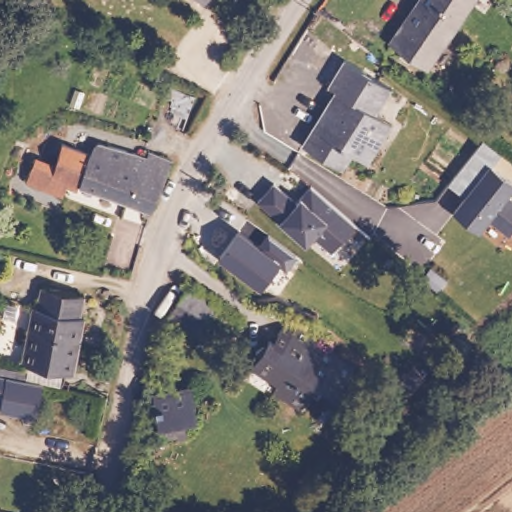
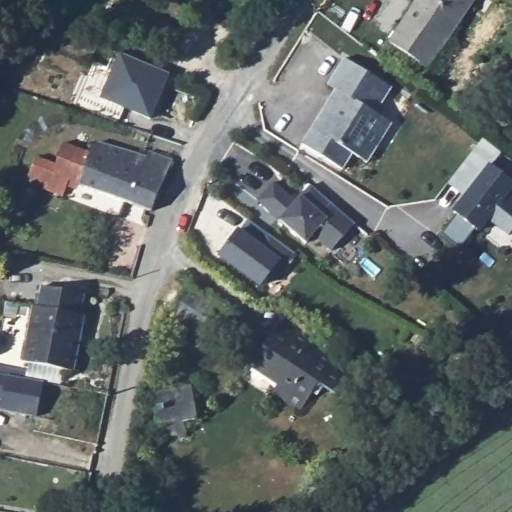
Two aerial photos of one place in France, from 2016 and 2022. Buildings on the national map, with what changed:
unchanged [(391,36),(417,0),(471,0),(428,65),(391,36)]
new [(101,98),(119,52),(170,75),(151,119),(101,98)]
unchanged [(365,160),(355,154),(348,149),(335,166),(292,134),(324,89),(331,94),(338,83),(331,76),(351,54),(394,87),(377,110),(381,114),(393,120),(365,160)]
unchanged [(91,131),(170,159),(166,170),(150,164),(147,170),(86,146),(91,131)]
unchanged [(493,168),(512,182),(512,192),(509,196),(512,199),(512,231),(509,235),(490,220),(480,232),(448,209),(460,194),(447,185),(482,140),(504,154),(493,168)]
unchanged [(72,174),(67,186),(28,175),(34,158),(55,162),(62,146),(86,146),(147,170),(150,164),(166,170),(153,202),(72,174)]
unchanged [(332,251),(313,235),(307,242),(281,219),(258,200),(275,183),(298,202),(303,197),(312,186),(353,222),(332,251)]
unchanged [(288,271),(279,264),(262,286),(218,257),(240,229),(248,220),(296,256),(288,271)]
unchanged [(188,278),(239,311),(237,323),(213,306),(197,325),(171,307),(188,278)]
unchanged [(88,291),(83,310),(88,310),(75,365),(26,353),(37,298),(43,298),(47,282),(88,291)]
unchanged [(281,390),(283,380),(254,366),(267,337),(278,343),(291,317),(309,325),(306,330),(337,344),(309,404),(281,390)]
unchanged [(3,377),(8,377),(1,402),(0,402),(0,376),(3,377)]
unchanged [(1,402),(8,377),(44,386),(35,421),(0,413),(0,407),(1,402)]
unchanged [(159,389),(197,388),(198,420),(159,420),(159,389)]

